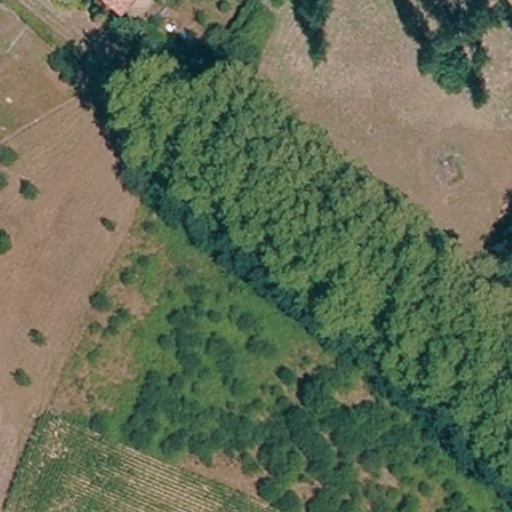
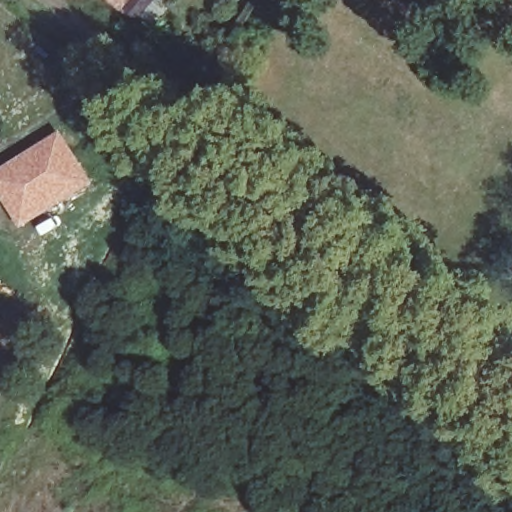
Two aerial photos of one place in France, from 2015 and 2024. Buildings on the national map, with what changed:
unchanged [(117,12),(103,0),(126,0),(125,2),(117,12)]
new [(81,172),(49,194),(54,203),(20,224),(10,206),(15,202),(7,191),(1,193),(0,192),(0,174),(59,138),(81,172)]

